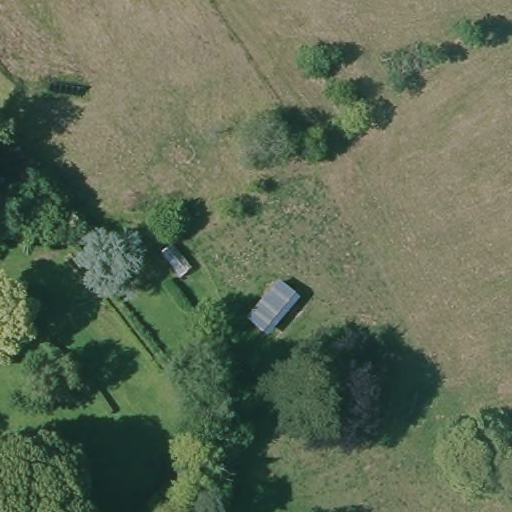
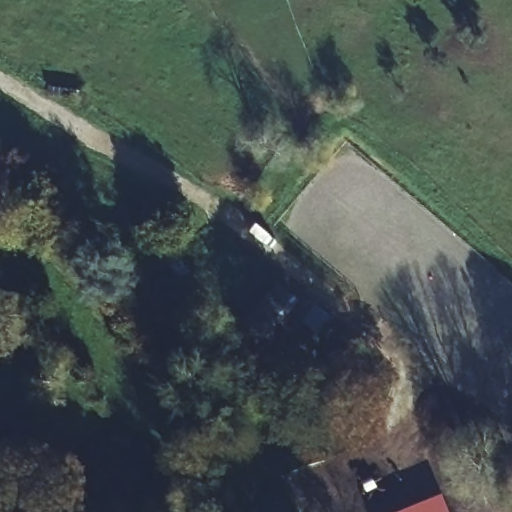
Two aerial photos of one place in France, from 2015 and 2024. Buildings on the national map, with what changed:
new [(449,512),(394,512),(441,492),(449,512)]

